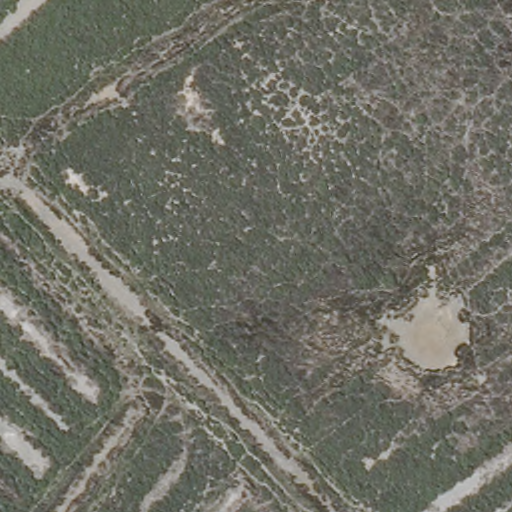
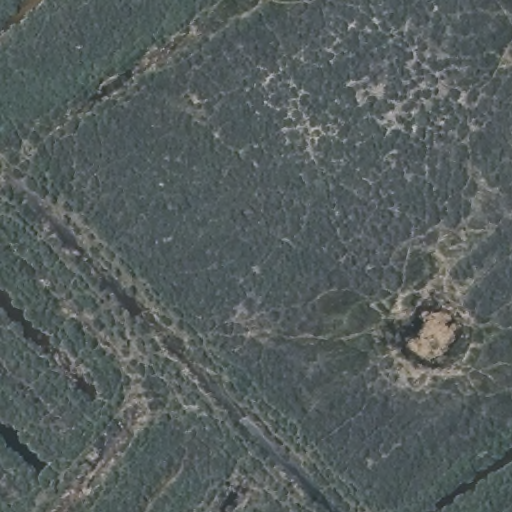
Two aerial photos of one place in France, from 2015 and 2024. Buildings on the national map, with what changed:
[]

